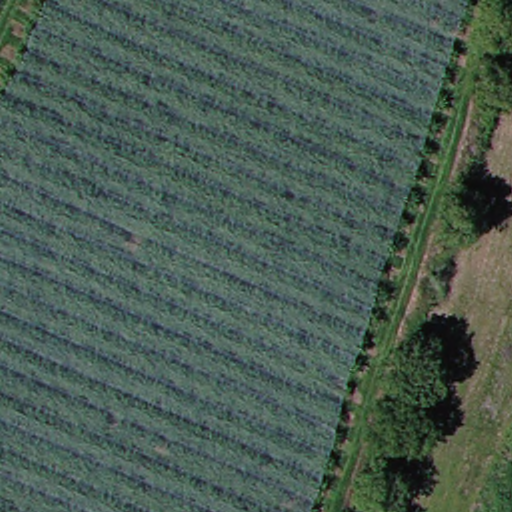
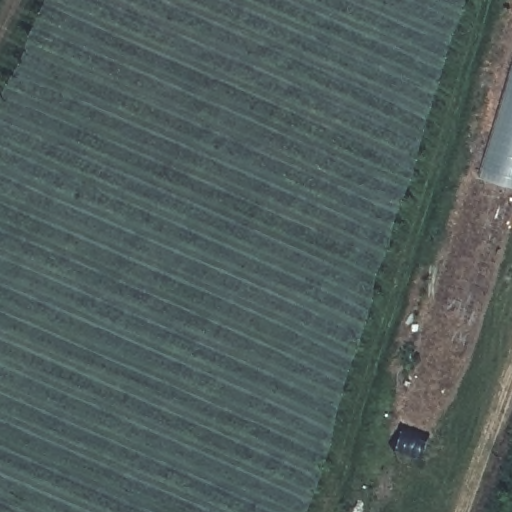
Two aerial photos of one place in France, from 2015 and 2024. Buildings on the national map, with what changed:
new [(482,177),(512,73),(512,186),(482,177)]

